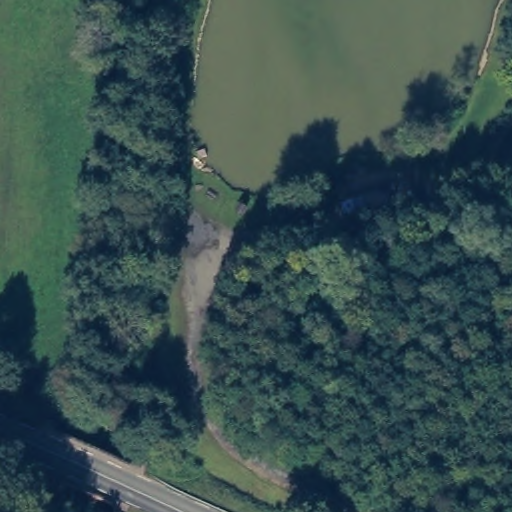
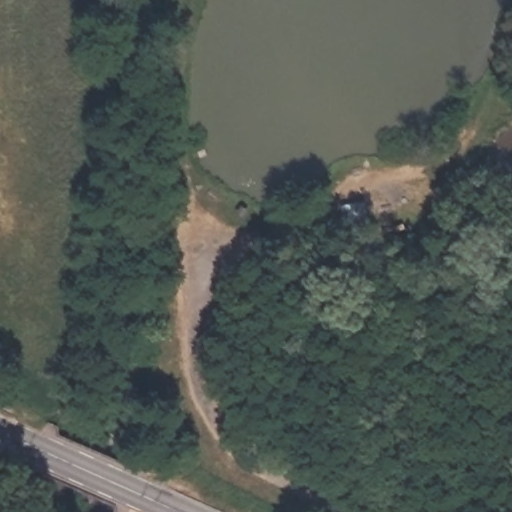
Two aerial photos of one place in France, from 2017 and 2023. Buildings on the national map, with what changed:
unchanged [(401,194),(428,185),(440,207),(406,221),(405,211),(346,222),(342,206),(357,202),(355,187),(397,179),(401,194)]

